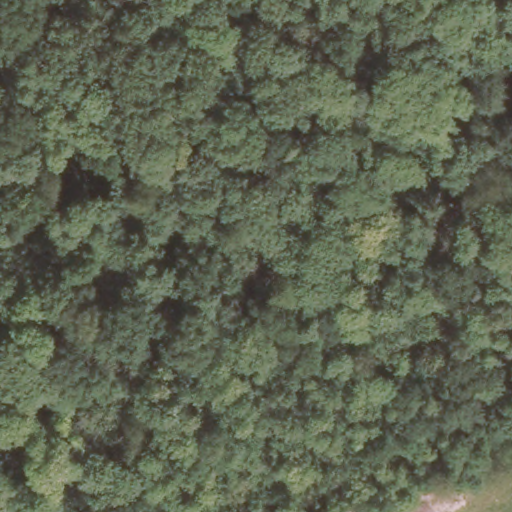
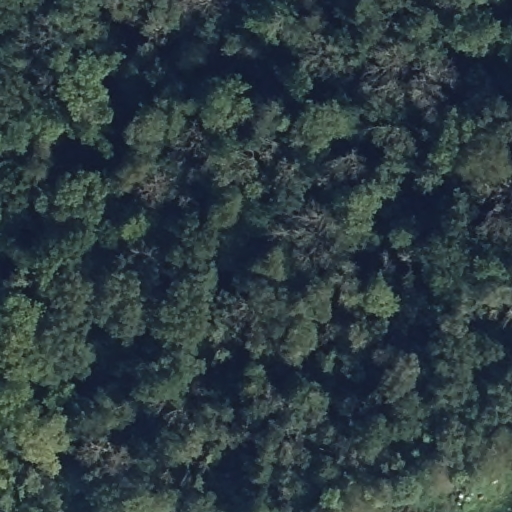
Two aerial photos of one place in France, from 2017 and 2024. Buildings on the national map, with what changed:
unchanged [(78,393),(62,399),(54,377),(70,371),(78,393)]

